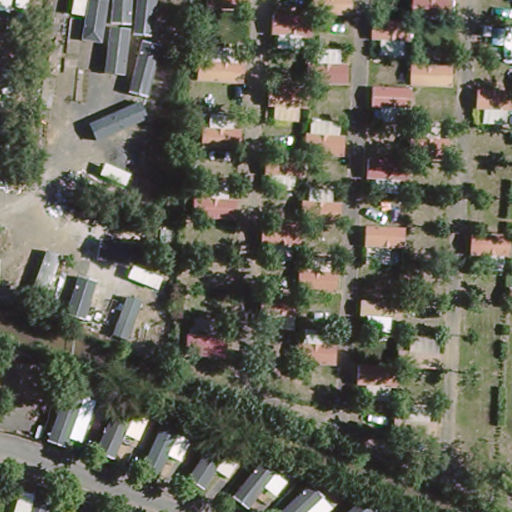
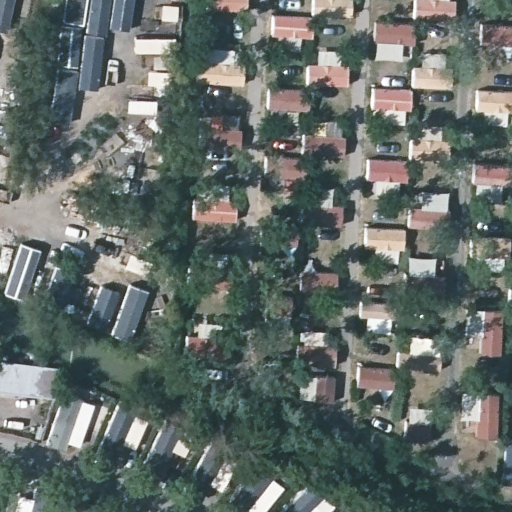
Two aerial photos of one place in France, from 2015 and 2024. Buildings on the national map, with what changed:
unchanged [(50,381),(52,381),(50,408),(36,407),(0,404),(0,374),(50,381)]

